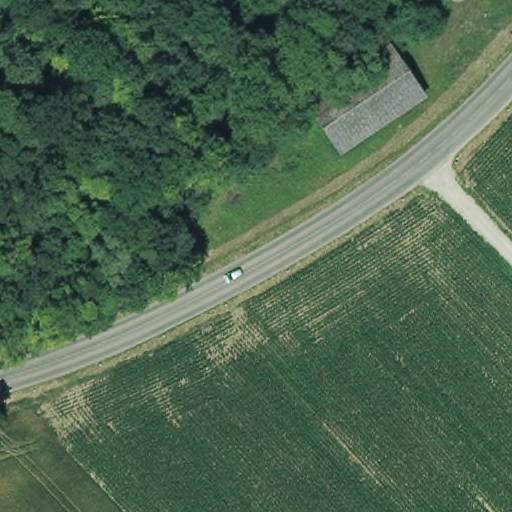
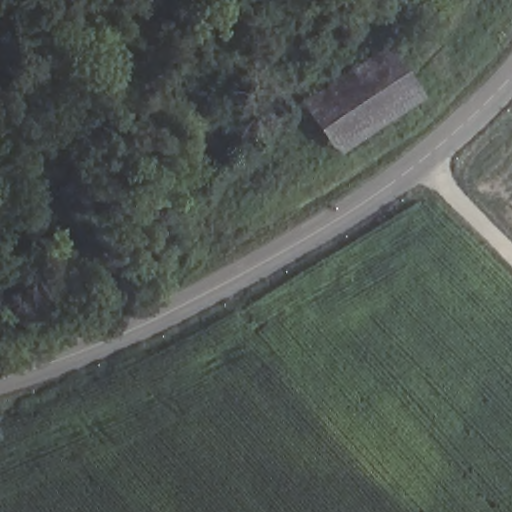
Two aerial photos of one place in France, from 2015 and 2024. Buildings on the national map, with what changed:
unchanged [(421,97),(337,155),(310,113),(393,56),(421,97)]

